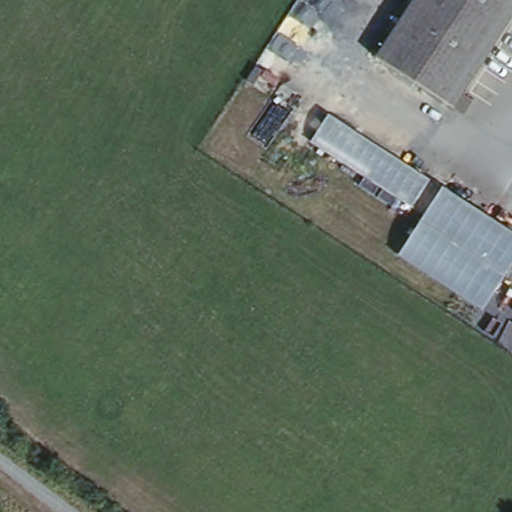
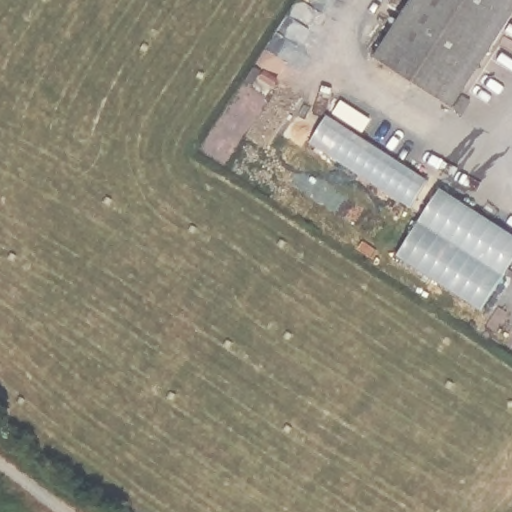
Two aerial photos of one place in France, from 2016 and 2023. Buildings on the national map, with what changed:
unchanged [(512,0),(512,15),(451,109),(370,56),(408,0),(512,0)]
unchanged [(394,262),(420,220),(306,147),(325,120),(512,239),(512,264),(479,314),(394,262)]

